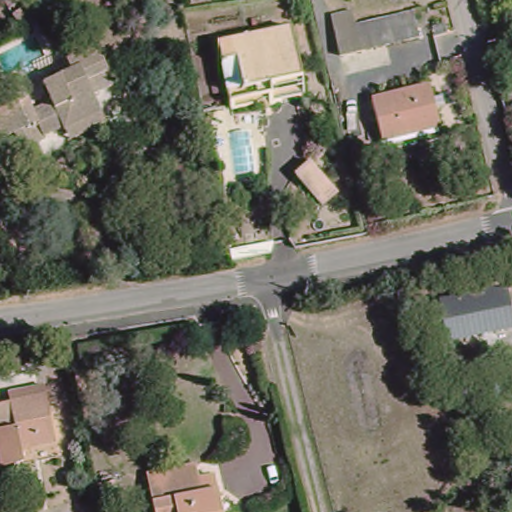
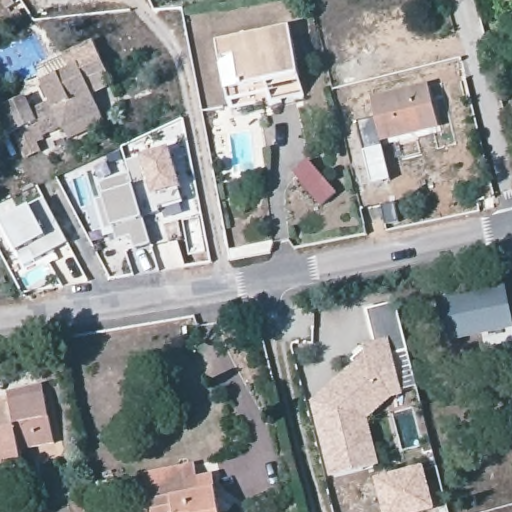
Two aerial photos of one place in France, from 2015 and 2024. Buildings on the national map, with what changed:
unchanged [(16,0),(19,3),(11,8),(5,0),(16,0)]
unchanged [(28,17),(20,22),(14,13),(22,8),(28,17)]
unchanged [(332,16),(352,10),(356,25),(386,17),(412,11),(419,39),(393,45),(341,57),(332,16)]
unchanged [(221,69),(217,52),(289,37),(300,86),(243,97),(228,100),(221,69)]
unchanged [(70,145),(66,135),(64,132),(44,142),(46,145),(39,149),(43,157),(27,164),(16,139),(5,144),(0,135),(0,115),(28,102),(34,116),(53,107),(44,87),(59,81),(71,75),(64,59),(93,45),(102,64),(108,62),(113,74),(107,77),(113,90),(101,97),(106,109),(99,113),(101,118),(106,129),(70,145)]
unchanged [(432,93),(441,91),(445,109),(436,111),(440,129),(422,133),(382,142),(371,97),(402,89),(429,83),(432,93)]
new [(131,162),(168,152),(182,203),(159,210),(161,218),(145,222),(135,187),(132,174),(131,162)]
new [(313,161),(339,191),(324,205),(298,175),(313,161)]
new [(132,174),(135,187),(145,222),(153,245),(135,250),(132,238),(118,243),(116,235),(106,238),(95,199),(104,197),(101,182),(132,174)]
new [(47,201),(71,246),(40,265),(35,255),(24,261),(3,224),(47,201)]
unchanged [(506,291),(512,320),(512,329),(447,345),(439,307),(506,291)]
new [(356,360),(369,350),(381,347),(372,310),(400,303),(419,385),(404,388),(365,417),(377,466),(336,476),(318,403),(362,366),(356,360)]
unchanged [(28,467),(5,472),(0,452),(0,410),(15,407),(13,397),(47,390),(55,425),(65,423),(67,432),(57,435),(60,448),(26,456),(28,467)]
new [(424,465),(436,511),(431,512),(383,512),(374,478),(424,465)]
unchanged [(147,478),(195,470),(198,482),(213,480),(219,512),(154,512),(147,478)]

